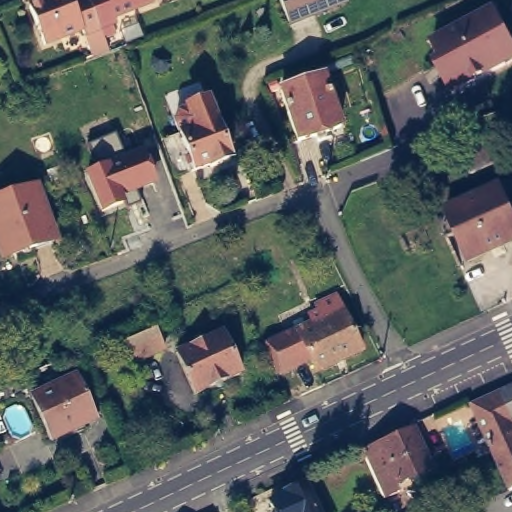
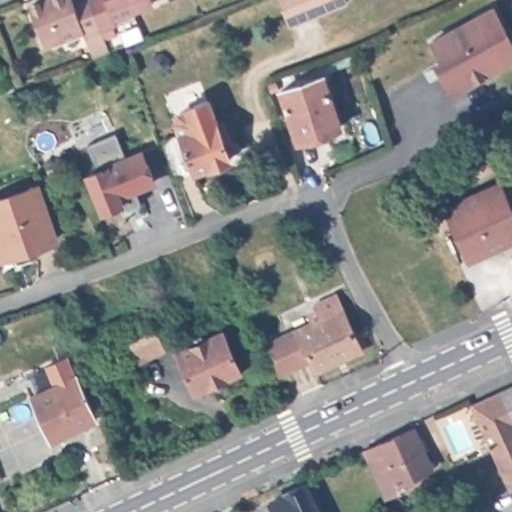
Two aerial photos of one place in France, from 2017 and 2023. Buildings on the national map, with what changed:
unchanged [(86,31),(84,26),(47,40),(32,4),(41,0),(75,0),(75,2),(81,0),(93,0),(102,25),(86,31)]
unchanged [(115,20),(102,25),(93,0),(153,0),(113,15),(115,20)]
unchanged [(279,0),(342,0),(288,23),(279,0)]
unchanged [(433,63),(437,59),(428,42),(493,8),(512,43),(512,62),(452,98),(433,63)]
unchanged [(285,77),(287,83),(323,69),(342,121),(325,127),(327,134),(318,136),(315,129),(299,135),(280,79),(285,77)]
unchanged [(188,169),(180,150),(167,114),(217,94),(219,98),(227,95),(235,119),(227,121),(232,134),(212,141),(220,161),(188,169)]
unchanged [(512,142),(512,163),(481,177),(469,149),(507,132),(512,142)]
unchanged [(140,149),(150,178),(136,183),(140,193),(94,211),(80,173),(140,149)]
unchanged [(46,161),(74,151),(79,165),(51,175),(46,161)]
unchanged [(512,174),(512,234),(458,258),(436,209),(512,174)]
unchanged [(32,183),(50,232),(25,240),(28,247),(12,253),(10,247),(0,250),(0,194),(32,183)]
unchanged [(321,316),(317,309),(328,304),(325,298),(342,290),(367,344),(322,365),(315,351),(281,367),(270,340),(321,316)]
unchanged [(227,325),(247,368),(202,388),(182,346),(227,325)]
unchanged [(156,326),(165,348),(135,362),(125,340),(156,326)]
unchanged [(103,434),(57,454),(38,412),(55,405),(50,393),(32,400),(33,403),(0,417),(0,401),(27,389),(57,377),(66,399),(84,392),(93,412),(102,409),(110,427),(102,431),(103,434)]
unchanged [(512,380),(512,480),(505,484),(505,483),(466,400),(512,380)]
unchanged [(369,451),(420,428),(437,469),(387,492),(369,451)]
unchanged [(272,503),(287,497),(286,493),(305,484),(317,512),(277,512),(272,503)]
unchanged [(425,506),(452,493),(461,512),(428,512),(425,506)]

